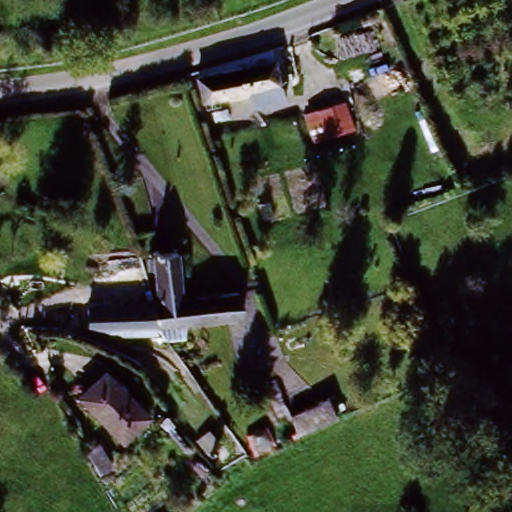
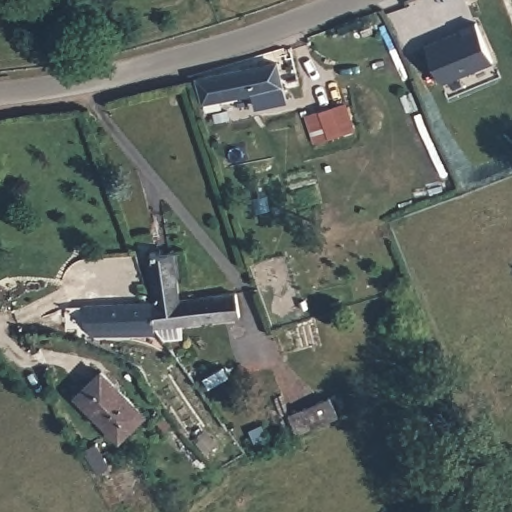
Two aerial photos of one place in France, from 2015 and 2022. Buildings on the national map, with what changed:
new [(495,60),(444,83),(426,44),(459,30),(457,27),(476,19),(495,60)]
unchanged [(279,57),(287,77),(221,99),(215,79),(279,57)]
unchanged [(304,119),(348,104),(357,131),(312,146),(304,119)]
unchanged [(157,297),(156,251),(180,249),(184,294),(157,297)]
unchanged [(157,297),(184,294),(222,290),(237,288),(239,314),(158,319),(154,297),(157,297)]
unchanged [(154,320),(154,325),(85,330),(85,304),(154,297),(158,319),(154,320)]
unchanged [(79,391),(100,366),(147,405),(125,429),(79,391)]
unchanged [(292,432),(287,415),(305,410),(319,406),(325,420),(313,424),(292,432)]
unchanged [(105,451),(115,470),(100,477),(92,458),(105,451)]

